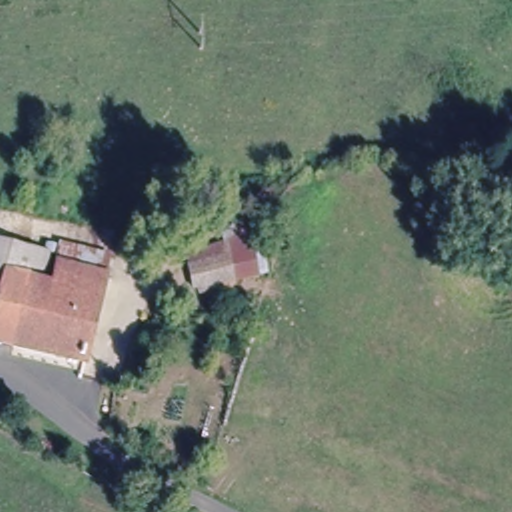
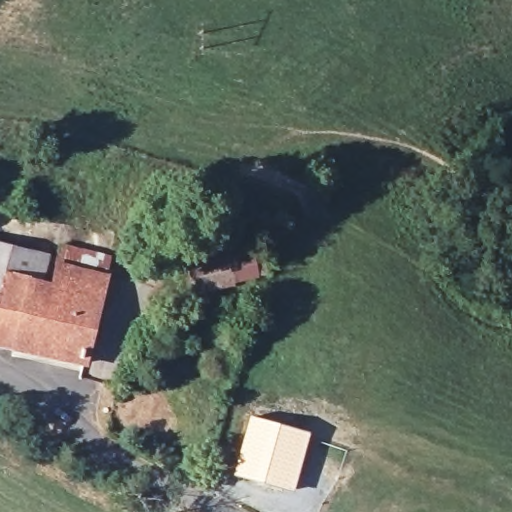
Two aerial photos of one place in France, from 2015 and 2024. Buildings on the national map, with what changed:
unchanged [(222,237),(216,221),(242,216),(263,266),(191,295),(184,246),(222,237)]
unchanged [(0,337),(0,239),(15,243),(11,268),(57,279),(63,256),(106,270),(87,360),(0,337)]
demolished [(171,349),(162,388),(136,380),(144,342),(150,344),(171,349)]
new [(250,415),(311,432),(294,491),(232,475),(250,415)]

